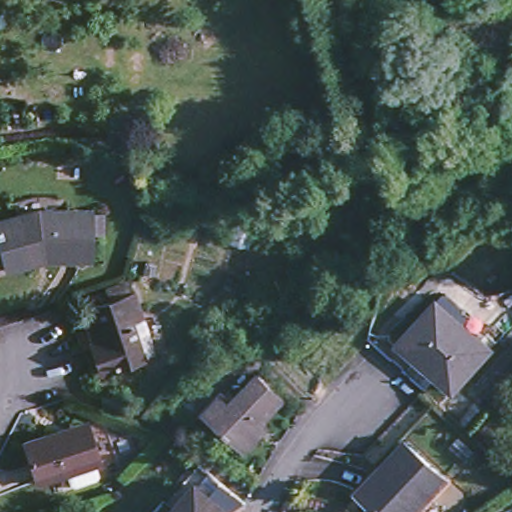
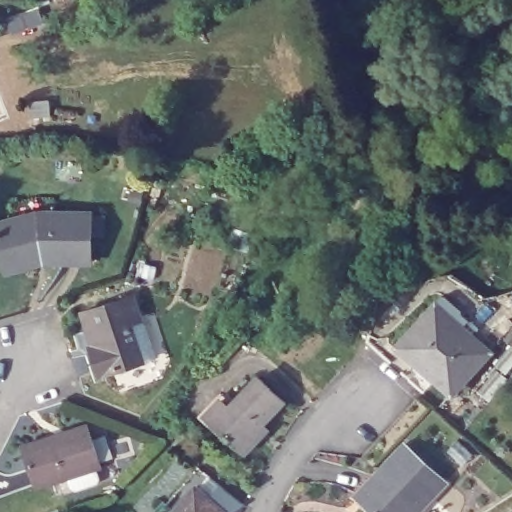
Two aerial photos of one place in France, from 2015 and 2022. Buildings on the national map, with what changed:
unchanged [(84,203),(85,251),(49,252),(48,246),(38,246),(28,249),(27,255),(0,262),(0,213),(30,205),(84,203)]
unchanged [(128,290),(150,350),(97,370),(87,342),(92,339),(80,308),(128,290)]
unchanged [(449,388),(420,362),(425,357),(420,352),(417,355),(400,338),(431,304),(447,319),(445,321),(463,337),(469,331),(486,347),(449,388)]
unchanged [(219,394),(227,402),(256,371),(282,396),(261,418),(258,417),(252,424),(258,430),(242,448),(202,411),(219,394)]
unchanged [(55,429),(57,434),(85,426),(96,464),(34,482),(21,439),(55,429)]
unchanged [(410,512),(377,512),(354,491),(373,468),(378,471),(407,437),(445,470),(410,512)]
unchanged [(224,512),(163,512),(190,481),(225,511),(224,512)]

